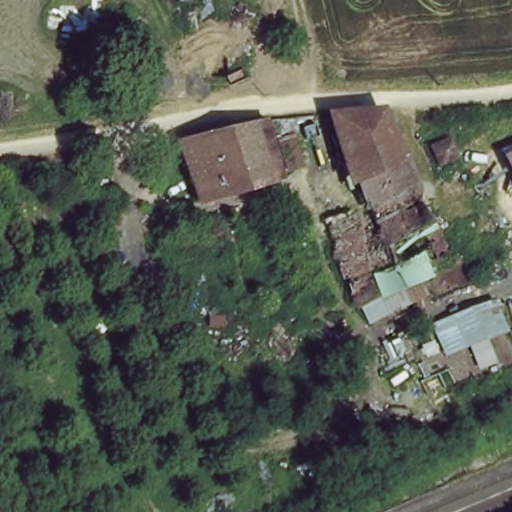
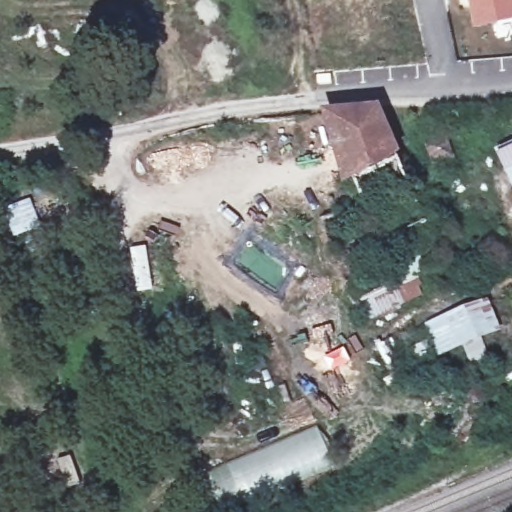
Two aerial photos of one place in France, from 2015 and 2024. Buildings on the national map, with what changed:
new [(474,27),(468,0),(512,0),(512,19),(474,27)]
unchanged [(345,177),(323,108),(379,102),(384,116),(400,160),(355,173),(345,177)]
demolished [(302,131),(289,134),(296,161),(278,164),(271,137),(263,140),(278,176),(189,196),(168,135),(252,118),(303,112),(302,131)]
unchanged [(500,146),(512,140),(512,175),(500,146)]
unchanged [(430,242),(450,235),(458,250),(414,272),(392,283),(364,201),(359,184),(355,173),(400,160),(430,242)]
unchanged [(392,283),(347,306),(319,217),(364,201),(392,283)]
unchanged [(495,326),(453,343),(442,312),(466,298),(487,297),(495,326)]
new [(317,425),(336,468),(278,496),(230,512),(220,512),(203,473),(317,425)]

